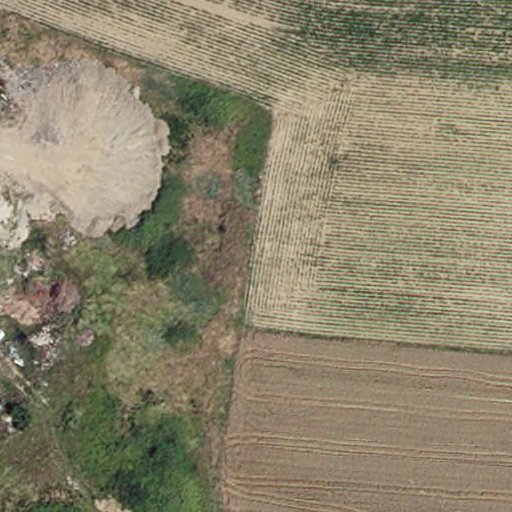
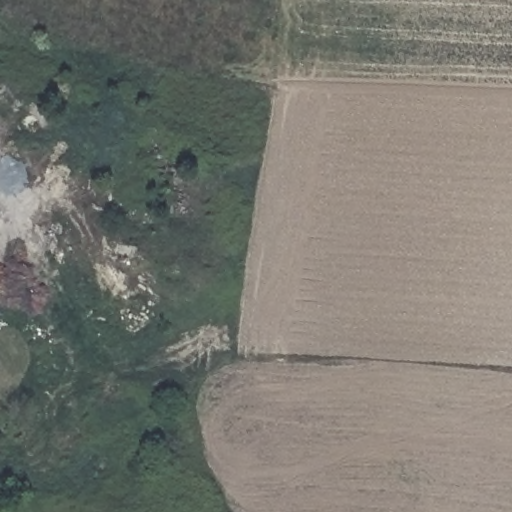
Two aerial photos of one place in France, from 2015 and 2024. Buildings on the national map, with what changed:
[]

